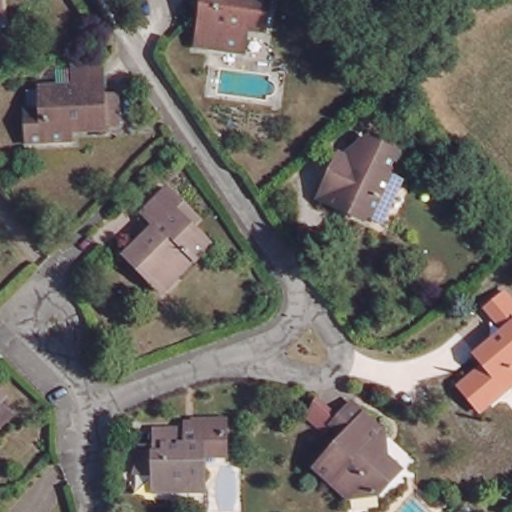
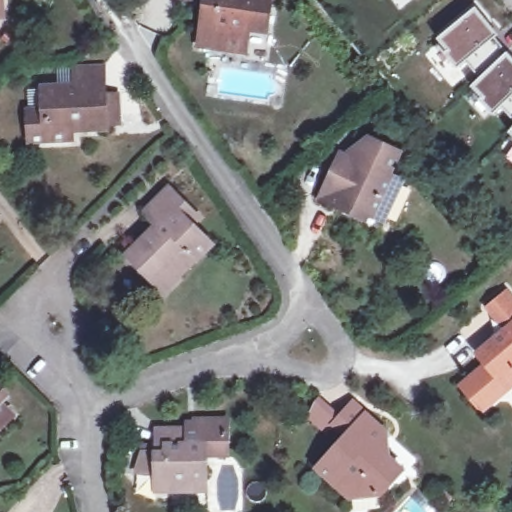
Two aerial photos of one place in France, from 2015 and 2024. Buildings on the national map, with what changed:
unchanged [(0,18),(0,0),(1,0),(2,18),(0,18)]
unchanged [(265,31),(245,28),(244,36),(242,52),(217,49),(198,46),(205,1),(199,0),(269,0),(265,31)]
new [(512,57),(512,119),(502,107),(496,112),(471,87),(480,78),(466,61),(460,66),(437,38),(476,7),(490,24),(487,27),(507,52),(512,57)]
unchanged [(112,96),(113,121),(98,123),(98,128),(68,130),(68,140),(23,142),(22,108),(40,108),(40,88),(70,86),(70,67),(95,66),(97,85),(97,95),(112,96)]
new [(512,129),(512,136),(508,132),(512,129)]
unchanged [(370,138),(403,154),(392,180),(405,186),(387,226),(345,206),(342,212),(326,204),(347,159),(358,164),(370,138)]
unchanged [(158,280),(132,254),(148,237),(152,241),(165,228),(148,211),(173,187),(205,218),(197,225),(215,243),(183,275),(168,290),(158,280)]
unchanged [(462,388),(485,368),(477,358),(505,334),(495,322),(487,312),(507,295),(512,301),(512,389),(507,393),(482,413),(462,388)]
unchanged [(377,424),(374,428),(386,439),(375,449),(381,455),(385,451),(402,469),(380,492),(371,484),(360,486),(350,497),(317,466),(347,435),(335,423),(330,430),(311,413),(319,398),(340,418),(355,402),(377,424)]
unchanged [(15,414),(0,430),(0,399),(15,414)]
unchanged [(194,496),(161,496),(161,478),(142,478),(150,447),(160,447),(160,434),(193,434),(193,425),(202,425),(202,414),(232,413),(232,447),(210,447),(210,483),(210,496),(194,496)]

